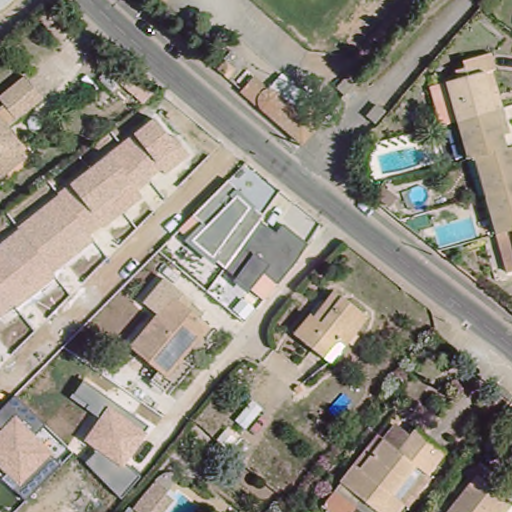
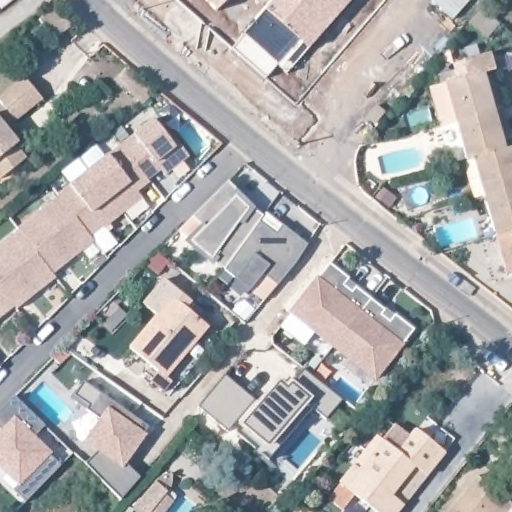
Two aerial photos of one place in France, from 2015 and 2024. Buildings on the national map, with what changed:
unchanged [(182,11),(191,0),(192,0),(223,27),(213,39),(182,11)]
new [(206,0),(228,0),(217,11),(206,0)]
new [(353,0),(309,50),(264,11),(273,0),(353,0)]
new [(488,39),(469,22),(481,7),(501,23),(488,39)]
new [(309,50),(287,74),(278,66),(243,35),(264,11),(309,50)]
new [(278,66),(266,79),(234,49),(244,36),(278,66)]
unchanged [(450,126),(440,87),(451,85),(448,75),(458,72),(456,66),(486,57),(491,73),(487,75),(493,96),(497,112),(450,126)]
new [(154,94),(144,105),(117,81),(128,69),(154,94)]
unchanged [(336,88),(348,75),(356,83),(345,96),(336,88)]
unchanged [(40,99),(13,120),(0,104),(0,95),(23,77),(40,99)]
unchanged [(241,92),(248,82),(260,92),(264,90),(269,89),(274,90),(299,112),(307,104),(325,119),(301,144),(241,92)]
unchanged [(468,162),(461,164),(450,126),(497,112),(503,130),(506,138),(498,140),(502,152),(468,162)]
unchanged [(167,173),(163,169),(139,191),(143,196),(92,234),(96,240),(53,273),(57,277),(16,310),(14,307),(0,317),(0,241),(70,185),(112,152),(132,135),(154,117),(170,137),(173,134),(189,156),(167,173)]
unchanged [(25,159),(0,178),(0,120),(19,142),(15,146),(25,159)]
unchanged [(509,151),(512,164),(512,192),(479,201),(468,162),(502,152),(509,151)]
unchanged [(266,300),(252,288),(249,293),(232,281),(235,277),(177,236),(227,182),(264,217),(262,221),(277,232),(284,226),(309,245),(266,300)]
unchanged [(384,190),(390,195),(385,200),(379,195),(384,190)]
unchanged [(479,201),(512,192),(512,269),(504,272),(493,238),(489,239),(479,201)]
new [(333,345),(290,312),(329,262),(371,297),(333,345)]
demolished [(361,315),(326,357),(291,328),(304,312),(308,316),(330,288),(361,315)]
unchanged [(172,298),(180,306),(187,297),(220,326),(214,333),(206,327),(167,375),(133,347),(172,298)]
new [(395,315),(396,313),(415,328),(377,380),(333,345),(371,297),(395,315)]
new [(258,406),(278,381),(286,387),(302,371),(338,402),(326,417),(311,406),(266,458),(200,406),(226,377),(258,406)]
unchanged [(125,463),(139,474),(120,498),(87,462),(97,451),(83,442),(100,417),(70,397),(84,378),(150,428),(125,463)]
unchanged [(26,502),(1,478),(5,473),(0,469),(0,431),(2,429),(0,427),(0,407),(14,393),(46,425),(35,437),(62,463),(26,502)]
unchanged [(378,436),(385,441),(391,433),(395,427),(403,433),(409,426),(417,432),(419,430),(447,452),(428,475),(416,467),(393,496),(404,504),(398,512),(377,512),(362,500),(352,512),(334,512),(324,504),(341,483),(355,465),(378,436)]
unchanged [(478,472),(512,499),(512,512),(445,512),(478,472)]
unchanged [(134,509),(156,483),(164,490),(145,512),(137,512),(134,509)]

